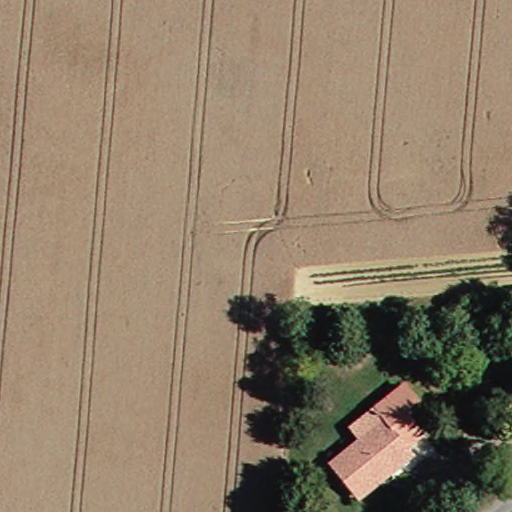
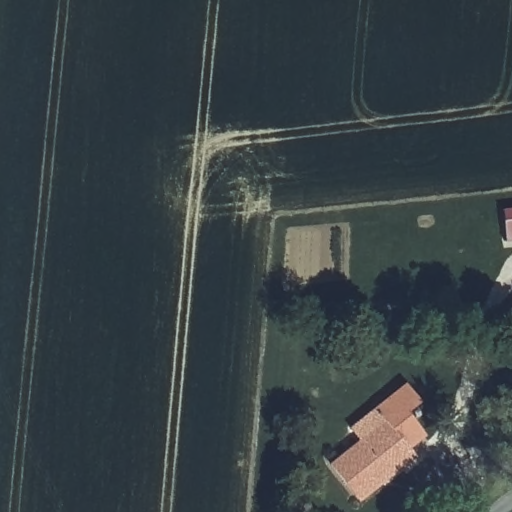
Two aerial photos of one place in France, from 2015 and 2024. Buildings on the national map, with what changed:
new [(503,208),(512,207),(512,240),(506,241),(503,208)]
unchanged [(354,501),(350,496),(325,464),(355,439),(347,428),(371,409),(401,384),(413,401),(400,411),(418,434),(402,449),(406,453),(410,458),(354,501)]

